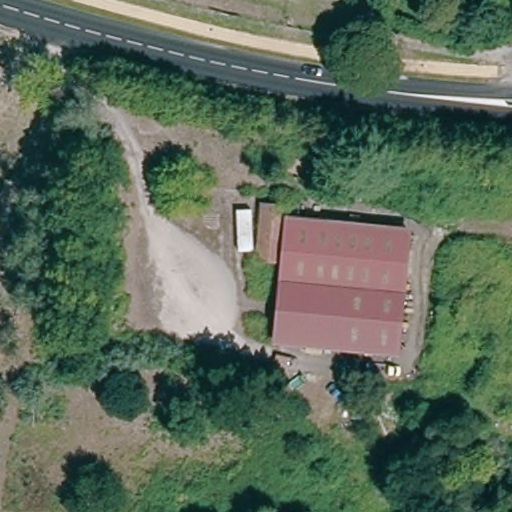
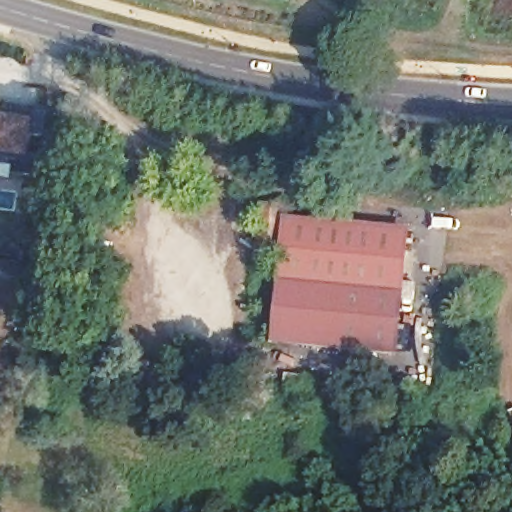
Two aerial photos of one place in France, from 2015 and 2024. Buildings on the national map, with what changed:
new [(6,118),(7,105),(48,110),(44,137),(29,135),(27,152),(17,151),(15,164),(0,162),(0,117),(6,118)]
unchanged [(274,257),(260,256),(263,206),(279,206),(274,257)]
unchanged [(405,233),(397,353),(276,343),(284,223),(405,233)]

